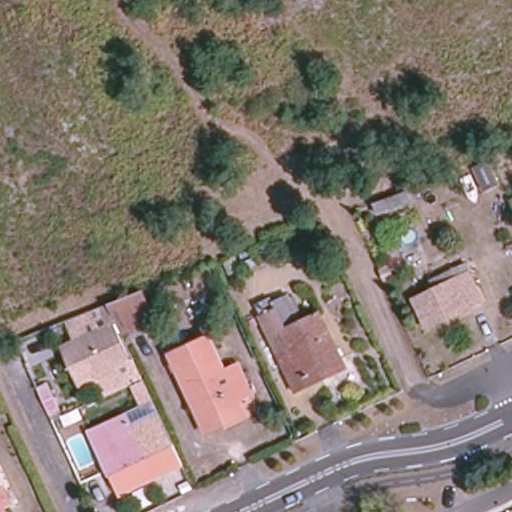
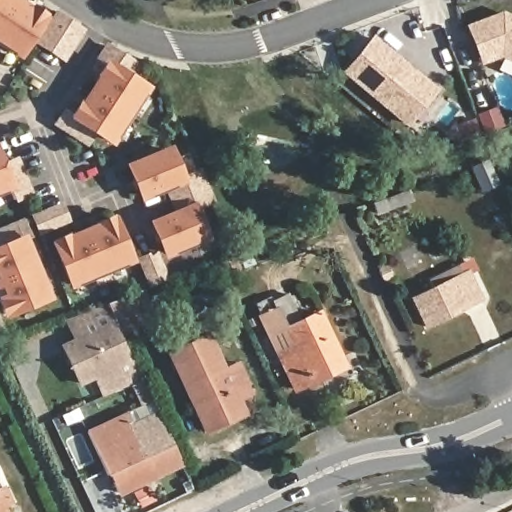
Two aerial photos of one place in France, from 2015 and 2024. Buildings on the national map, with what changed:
new [(25,0),(48,15),(19,59),(0,47),(0,0),(25,0)]
new [(34,43),(55,9),(85,29),(64,61),(34,43)]
new [(480,65),(464,24),(502,10),(512,14),(512,63),(500,58),(480,65)]
new [(406,126),(341,71),(372,34),(438,89),(406,126)]
new [(111,146),(95,135),(87,146),(53,124),(65,105),(72,109),(100,63),(94,60),(105,42),(141,64),(136,77),(149,85),(111,146)]
new [(182,174),(199,168),(213,202),(197,209),(210,239),(163,257),(147,220),(175,209),(167,189),(139,201),(123,163),(170,144),(182,174)]
new [(15,201),(11,190),(0,195),(0,154),(2,160),(18,155),(34,194),(15,201)]
unchanged [(407,184),(412,195),(390,204),(385,194),(407,184)]
new [(68,289),(48,240),(115,214),(134,262),(68,289)]
new [(2,319),(0,312),(0,226),(23,218),(30,235),(26,238),(51,298),(2,319)]
unchanged [(268,234),(274,247),(262,252),(256,239),(268,234)]
unchanged [(237,251),(240,257),(232,261),(230,255),(237,251)]
unchanged [(461,260),(483,307),(424,334),(406,295),(425,287),(420,279),(461,260)]
unchanged [(141,291),(154,317),(123,330),(121,332),(109,304),(141,291)]
unchanged [(330,379),(298,394),(256,308),(271,300),(275,307),(289,299),(301,325),(320,317),(342,361),(347,370),(330,379)]
unchanged [(106,325),(99,309),(109,304),(121,332),(123,330),(125,334),(121,335),(132,364),(77,387),(61,346),(106,325)]
unchanged [(226,419),(201,429),(166,355),(206,337),(222,371),(235,364),(249,393),(235,399),(238,404),(241,412),(226,419)]
unchanged [(156,411),(172,447),(149,458),(133,423),(156,411)]
unchanged [(105,421),(109,427),(130,418),(133,423),(149,458),(155,470),(119,487),(91,427),(105,421)]
unchanged [(4,487),(10,502),(4,507),(6,512),(0,512),(0,488),(4,487)]

